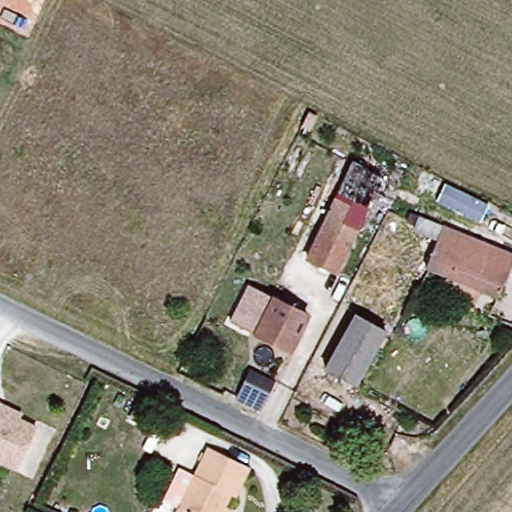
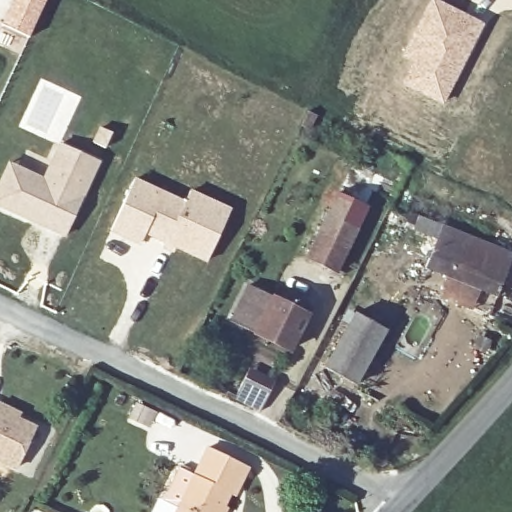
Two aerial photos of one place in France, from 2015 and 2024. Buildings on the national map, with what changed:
new [(44,0),(27,37),(0,24),(11,0),(44,0)]
new [(402,57),(429,0),(438,0),(485,22),(443,105),(398,82),(408,60),(402,57)]
new [(42,181),(59,146),(97,164),(62,238),(0,208),(0,183),(8,166),(42,181)]
unchanged [(308,260),(355,164),(382,177),(337,272),(308,260)]
new [(135,176),(185,199),(190,187),(232,207),(207,262),(146,235),(141,245),(109,232),(135,176)]
unchanged [(498,298),(431,268),(442,244),(417,231),(425,217),(512,256),(512,271),(498,298)]
unchanged [(262,335),(232,320),(251,281),(279,296),(262,335)]
unchanged [(312,314),(295,351),(262,335),(279,296),(312,314)]
unchanged [(357,380),(328,365),(354,316),(382,329),(357,380)]
unchanged [(276,379),(262,410),(234,397),(247,367),(276,379)]
unchanged [(0,457),(0,404),(2,400),(24,412),(21,417),(39,426),(20,467),(0,457)]
unchanged [(239,493),(232,491),(221,512),(180,512),(211,447),(250,467),(239,493)]

